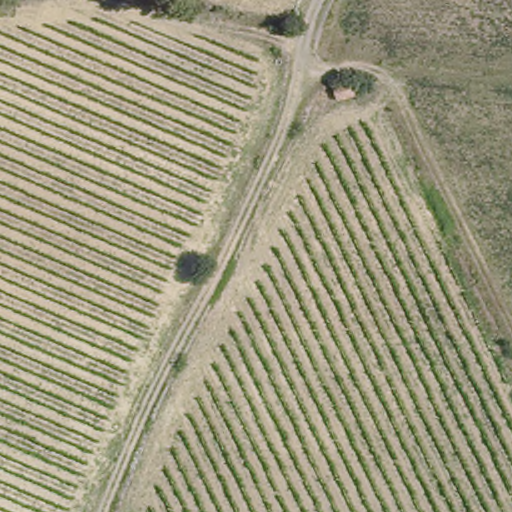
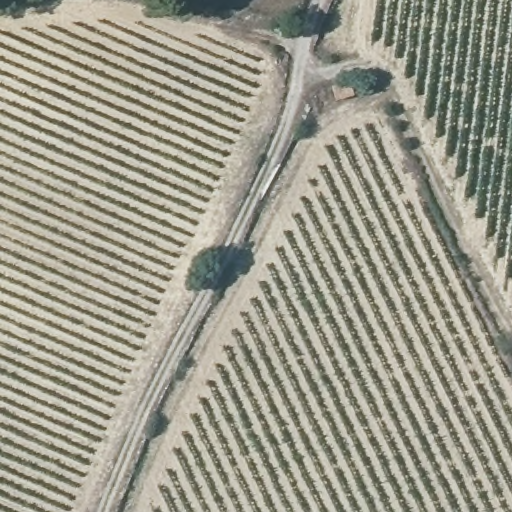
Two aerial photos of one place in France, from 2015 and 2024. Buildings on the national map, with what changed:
unchanged [(361,85),(360,107),(326,106),(330,86),(361,85)]

